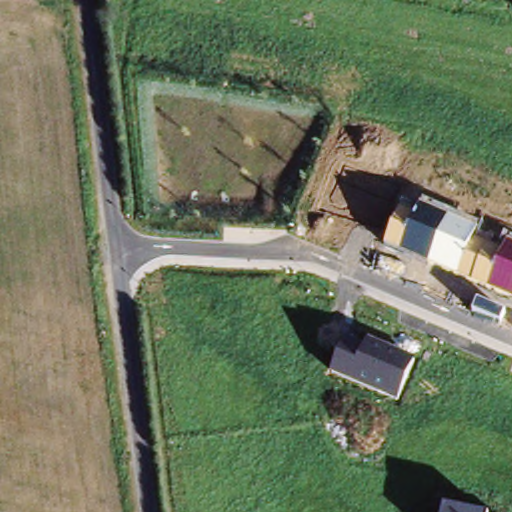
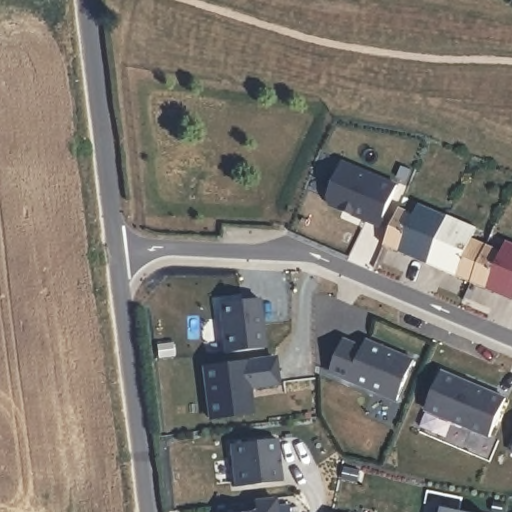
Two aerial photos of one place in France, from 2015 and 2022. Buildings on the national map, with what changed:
new [(341,169),(398,187),(385,228),(355,218),(356,216),(346,213),(346,215),(333,211),(329,205),(341,169)]
unchanged [(402,207),(417,212),(421,204),(477,226),(472,235),(502,249),(506,240),(512,242),(512,298),(386,245),(402,207)]
new [(259,298),(265,348),(226,353),(223,329),(226,329),(224,319),(221,319),(219,303),(259,298)]
unchanged [(368,342),(369,339),(414,358),(397,401),(331,372),(349,336),(368,342)]
new [(275,359),(278,383),(249,387),(252,414),(210,419),(204,367),(275,359)]
new [(443,372),(506,400),(490,437),(427,410),(443,372)]
new [(273,447),(278,490),(241,495),(236,452),(273,447)]
new [(256,510),(273,507),(273,512),(257,512),(256,510)]
unchanged [(469,512),(440,512),(441,507),(469,512)]

